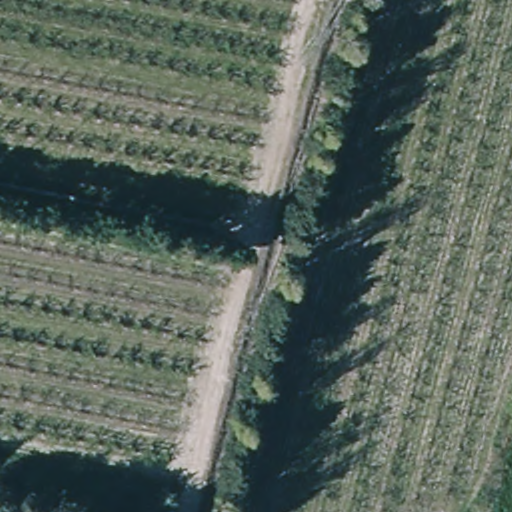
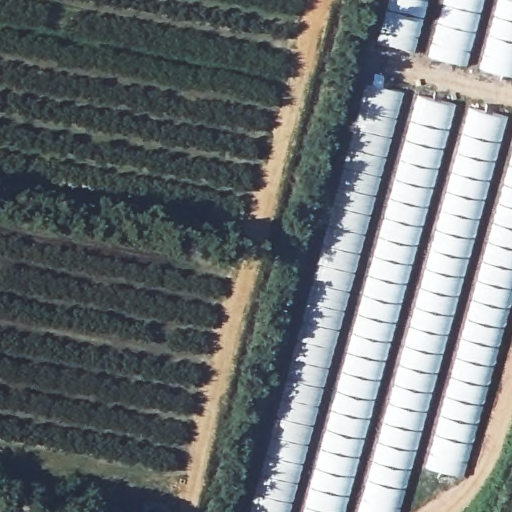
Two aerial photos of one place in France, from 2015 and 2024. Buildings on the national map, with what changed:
new [(389,0),(512,0),(512,73),(377,42),(389,0)]
new [(464,474),(411,460),(397,512),(362,512),(344,507),(343,512),(248,512),(365,82),(512,117),(512,292),(464,474)]

